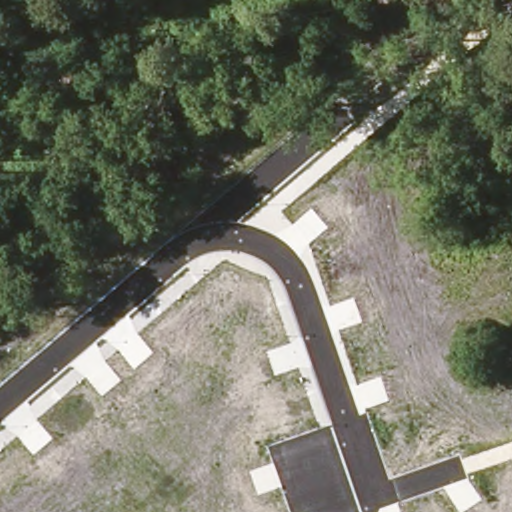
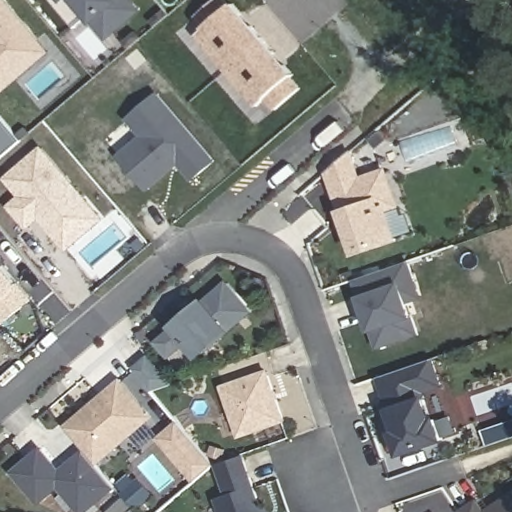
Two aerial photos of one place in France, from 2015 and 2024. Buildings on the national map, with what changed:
new [(3,90),(0,87),(0,0),(1,0),(36,40),(46,52),(15,79),(3,90)]
new [(53,0),(132,0),(138,7),(129,15),(107,34),(89,14),(75,25),(56,4),(53,0)]
new [(233,3),(303,87),(275,111),(265,100),(256,107),(196,35),(233,3)]
new [(146,189),(118,156),(141,136),(126,120),(155,95),(212,160),(192,179),(177,162),(167,171),(146,189)]
new [(0,160),(0,116),(21,141),(0,160)]
new [(56,239),(38,217),(26,227),(8,206),(20,196),(4,179),(39,149),(82,197),(83,196),(102,217),(89,228),(71,244),(65,249),(56,239)]
new [(398,205),(387,209),(398,240),(357,254),(335,191),(339,189),(329,172),(352,152),(361,180),(386,171),(398,205)]
new [(411,281),(418,298),(404,302),(416,335),(377,349),(351,282),(403,262),(411,281)]
new [(0,325),(0,324),(0,266),(29,300),(0,325)]
new [(200,357),(188,344),(171,358),(156,341),(228,280),(255,312),(200,357)]
new [(146,356),(171,382),(153,390),(133,368),(146,356)]
new [(437,360),(444,387),(424,392),(425,395),(429,395),(435,417),(440,416),(441,421),(452,416),(457,431),(446,435),(448,441),(401,456),(393,432),(397,431),(390,409),(378,378),(437,360)]
new [(288,422),(239,440),(222,385),(270,369),(288,422)]
new [(98,465),(84,448),(65,426),(121,377),(155,417),(98,465)]
new [(196,482),(159,437),(177,420),(215,463),(196,482)]
new [(116,487),(88,512),(80,512),(59,488),(40,505),(12,471),(42,446),(61,468),(84,448),(98,465),(116,487)]
new [(217,497),(227,495),(218,465),(248,456),(266,512),(223,512),(217,497)]
new [(461,510),(481,498),(487,510),(512,493),(512,512),(463,512),(461,510)]

